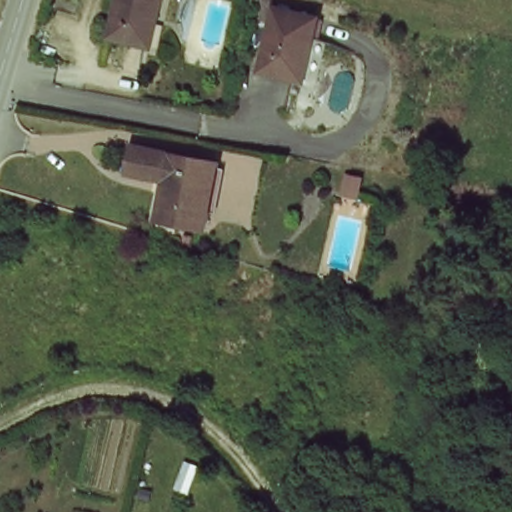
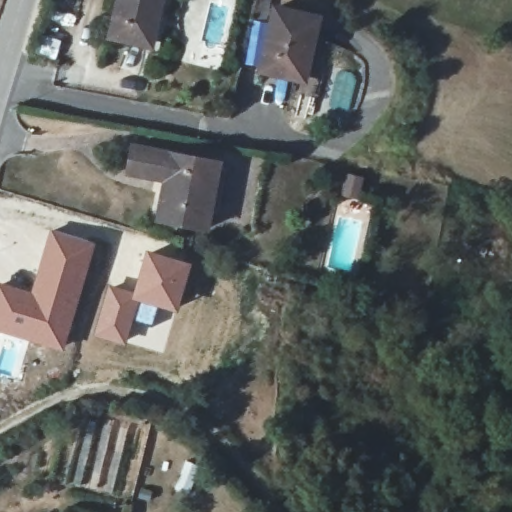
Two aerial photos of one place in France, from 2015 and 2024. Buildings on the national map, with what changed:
unchanged [(151,20),(145,45),(109,37),(118,0),(166,0),(161,22),(151,20)]
unchanged [(324,18),(315,55),(307,53),(301,78),(266,68),(280,8),(324,18)]
unchanged [(160,215),(164,176),(133,170),(139,142),(223,161),(208,226),(160,215)]
new [(30,290),(49,228),(96,242),(63,351),(0,333),(0,281),(30,290)]
new [(133,291),(146,249),(192,262),(177,311),(158,306),(132,297),(133,291)]
new [(108,283),(133,291),(132,297),(158,306),(152,325),(134,320),(126,345),(93,335),(108,283)]

